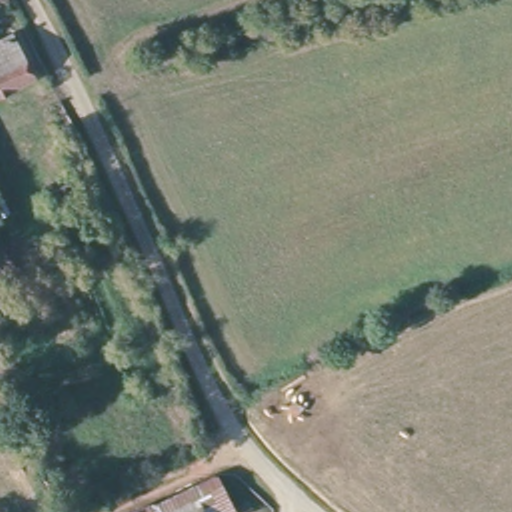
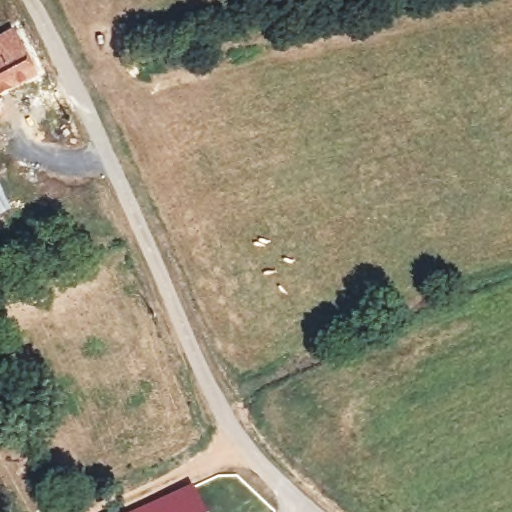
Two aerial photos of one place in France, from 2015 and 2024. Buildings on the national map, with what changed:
unchanged [(41,72),(0,92),(0,37),(18,27),(41,72)]
unchanged [(160,495),(191,480),(206,512),(167,512),(160,495)]
unchanged [(160,495),(167,512),(124,512),(160,495)]

